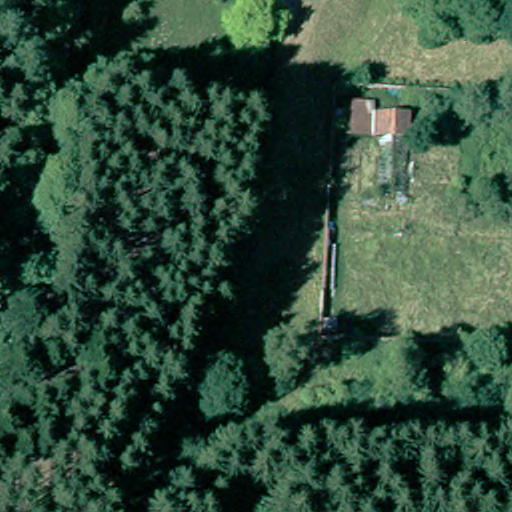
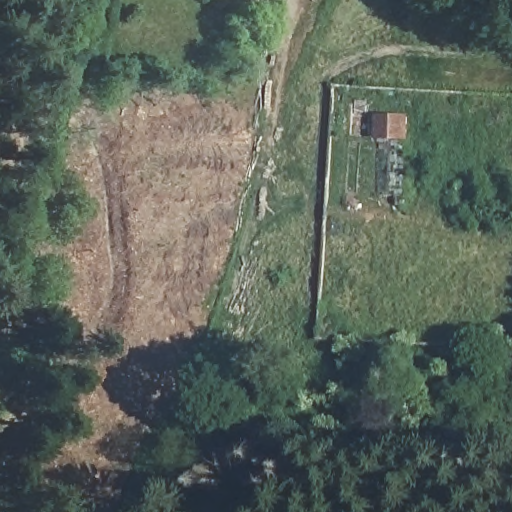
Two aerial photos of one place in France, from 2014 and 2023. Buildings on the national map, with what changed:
unchanged [(342,132),(340,92),(363,95),(365,102),(405,104),(403,135),(342,132)]

